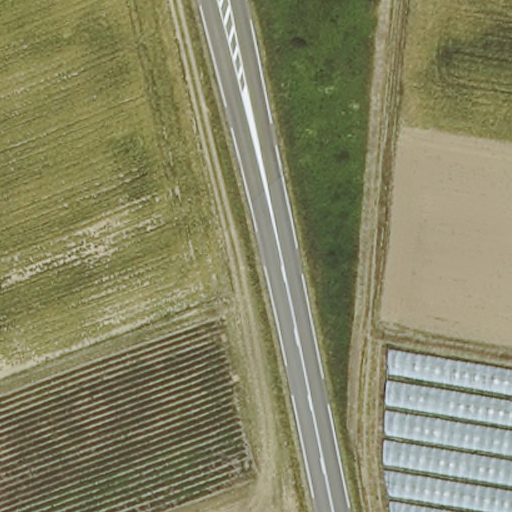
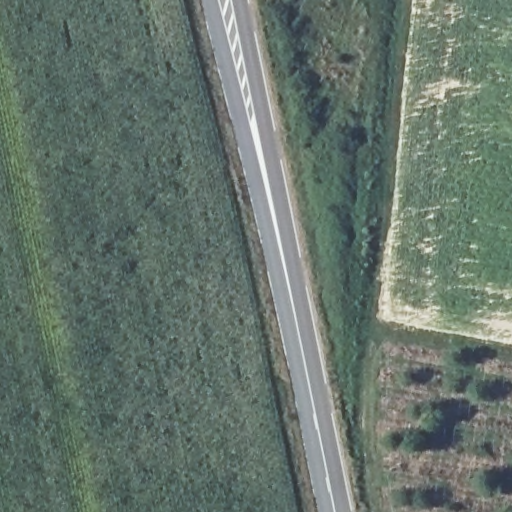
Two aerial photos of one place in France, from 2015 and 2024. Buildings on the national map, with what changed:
demolished [(387,466),(389,352),(512,373),(512,512),(394,512),(387,466)]

